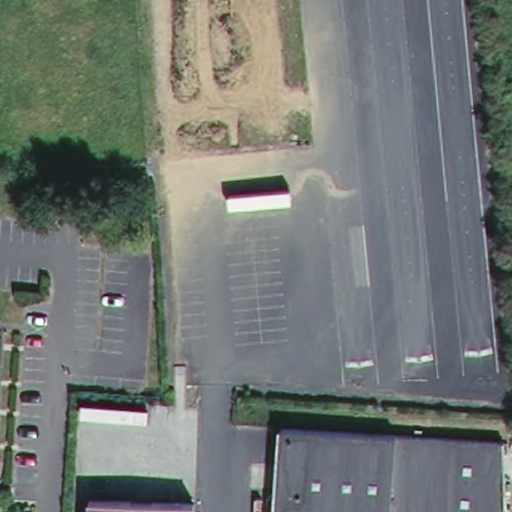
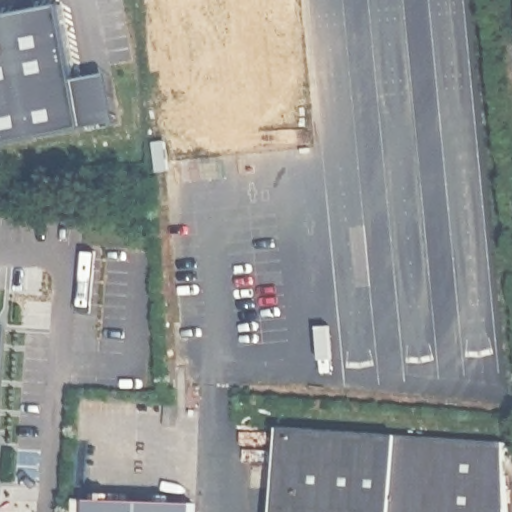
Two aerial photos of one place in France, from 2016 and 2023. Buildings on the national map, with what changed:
unchanged [(512,0),(512,32),(509,0),(512,0)]
new [(74,83),(82,130),(82,131),(0,146),(0,17),(60,6),(74,83)]
new [(106,77),(114,124),(82,130),(74,83),(106,77)]
unchanged [(506,442),(508,512),(273,512),(276,435),(506,442)]
unchanged [(90,502),(195,506),(195,512),(90,512),(90,502)]

